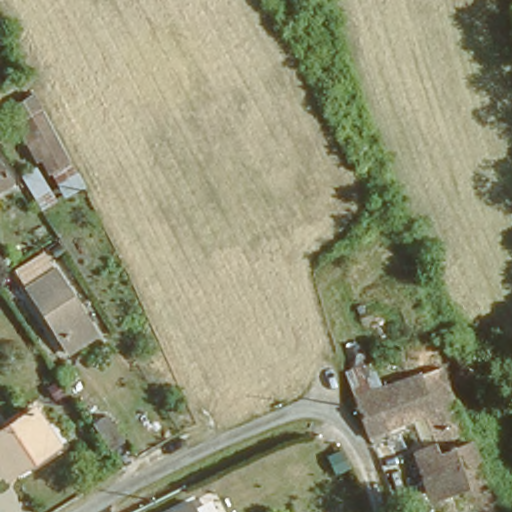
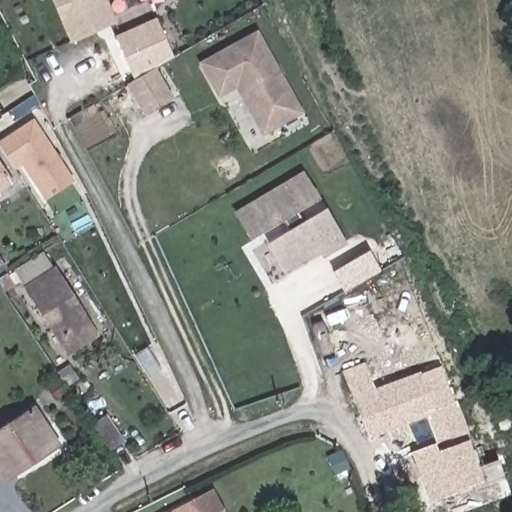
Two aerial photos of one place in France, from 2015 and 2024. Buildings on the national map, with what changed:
new [(116,24),(81,40),(74,43),(54,0),(106,0),(116,24)]
new [(125,59),(117,40),(159,21),(166,40),(175,58),(155,70),(171,97),(146,112),(130,85),(136,81),(125,59)]
new [(217,97),(199,62),(257,30),(305,114),(262,135),(235,88),(217,97)]
unchanged [(40,164),(15,118),(45,101),(86,182),(37,211),(21,174),(40,164)]
unchanged [(0,183),(0,165),(9,176),(0,183)]
new [(325,209),(345,244),(321,258),(319,254),(284,273),(265,244),(287,231),(282,222),(250,241),(234,211),(302,170),(320,198),(296,213),(302,221),(325,209)]
new [(370,249),(382,268),(348,289),(336,269),(370,249)]
unchanged [(94,325),(66,342),(25,276),(54,260),(94,325)]
unchanged [(0,268),(0,261),(4,265),(0,268)]
unchanged [(479,475),(432,490),(424,485),(411,446),(432,438),(422,410),(365,431),(350,392),(437,358),(479,475)]
unchanged [(4,473),(1,470),(0,470),(0,425),(33,405),(55,441),(4,473)]
unchanged [(120,444),(107,452),(90,425),(102,416),(120,444)]
unchanged [(345,455),(331,461),(325,444),(338,438),(345,455)]
new [(216,493),(225,512),(196,512),(192,505),(216,493)]
unchanged [(178,512),(192,505),(196,512),(178,512)]

